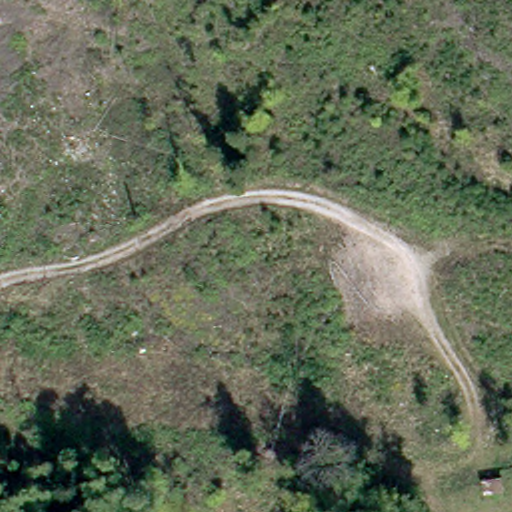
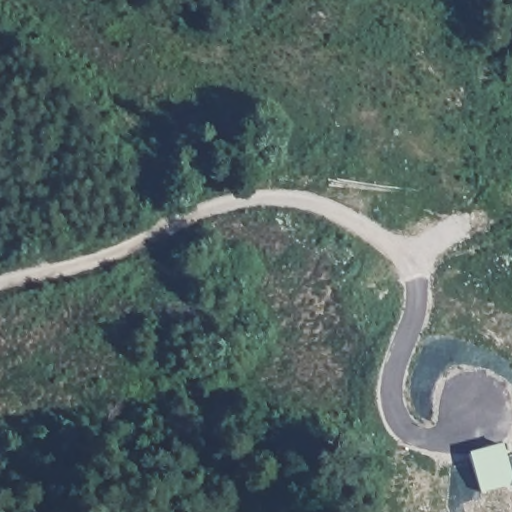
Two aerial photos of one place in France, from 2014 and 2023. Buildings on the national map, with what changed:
unchanged [(305,100),(294,95),(302,77),(313,82),(305,100)]
new [(501,441),(511,476),(507,485),(480,490),(478,485),(469,451),(501,441)]
demolished [(490,487),(492,502),(475,505),(472,490),(490,487)]

